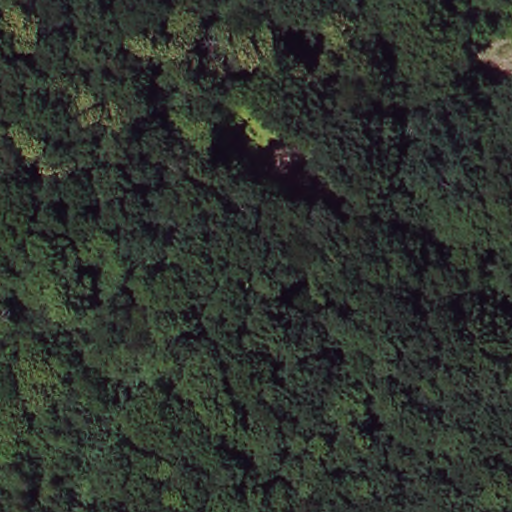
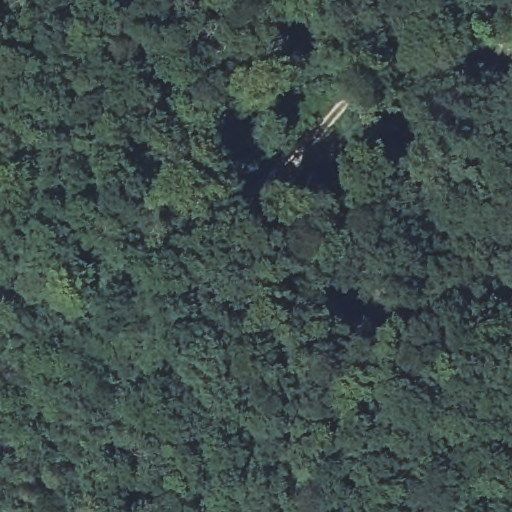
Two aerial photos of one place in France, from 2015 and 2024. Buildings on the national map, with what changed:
[]

